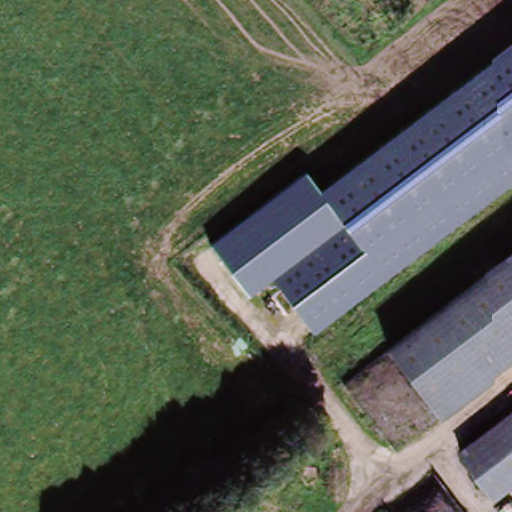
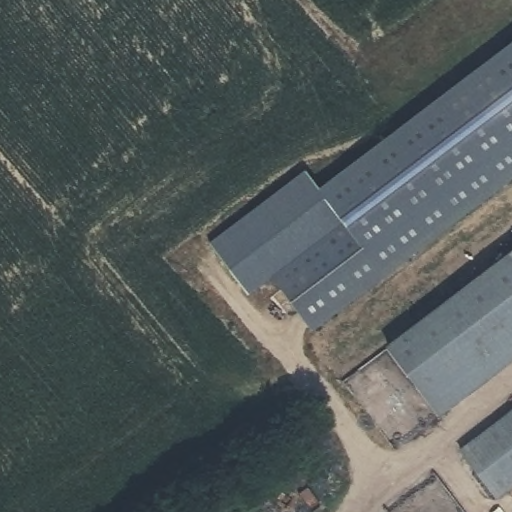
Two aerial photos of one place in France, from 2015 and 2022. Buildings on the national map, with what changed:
unchanged [(274,277),(248,296),(210,242),(309,169),(320,187),(512,42),(512,183),(312,332),(274,277)]
unchanged [(395,355),(512,275),(512,357),(434,410),(395,355)]
unchanged [(512,486),(495,497),(464,452),(512,418),(512,486)]

